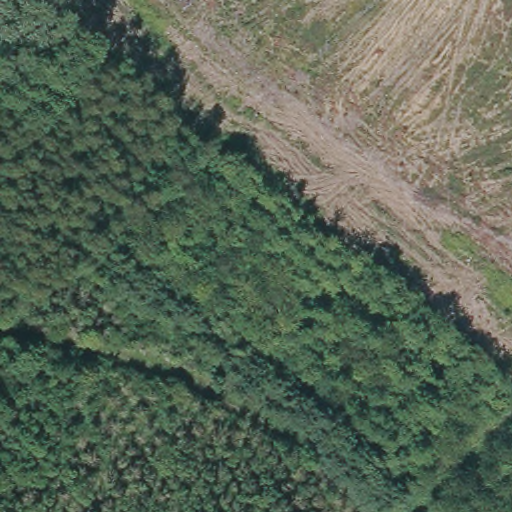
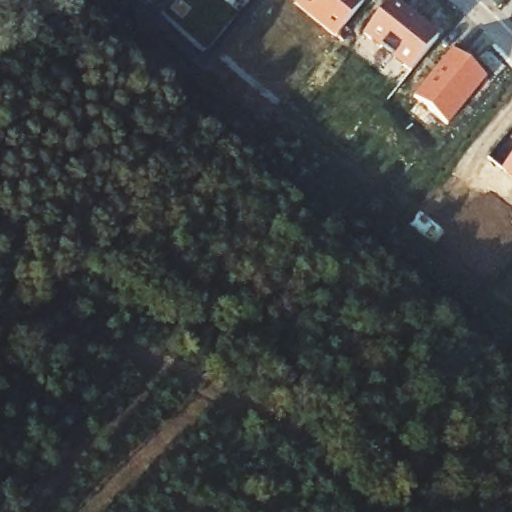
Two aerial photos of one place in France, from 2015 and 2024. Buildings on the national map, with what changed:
new [(364,0),(333,38),(292,5),(297,0),(363,0),(364,0)]
new [(392,2),(438,39),(410,73),(365,36),(392,2)]
new [(487,79),(448,127),(412,98),(452,50),(487,79)]
new [(500,171),(512,157),(512,181),(500,171)]

